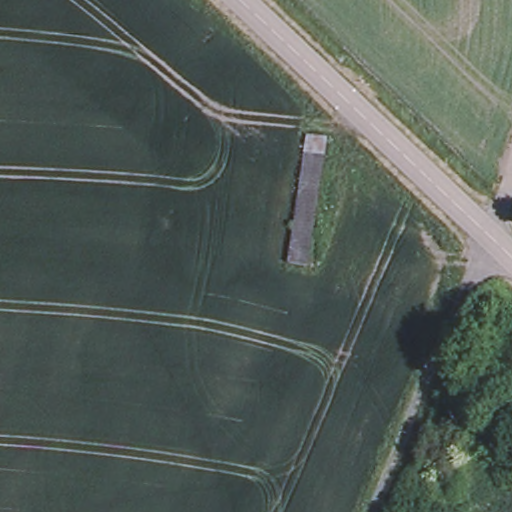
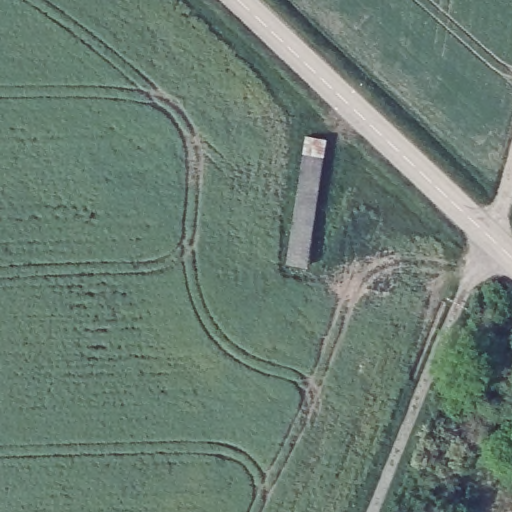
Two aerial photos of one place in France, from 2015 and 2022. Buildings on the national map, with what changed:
unchanged [(282,261),(304,133),(329,137),(308,264),(282,261)]

